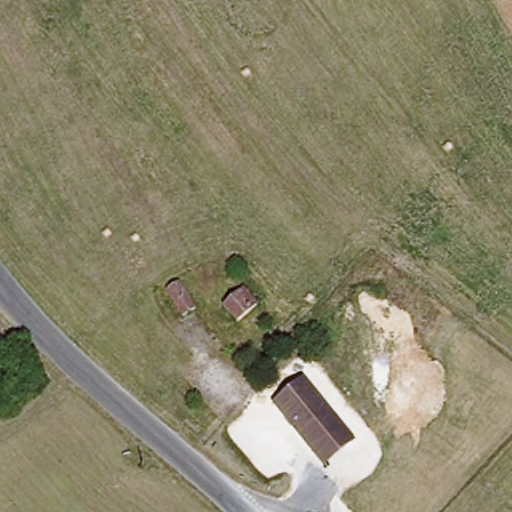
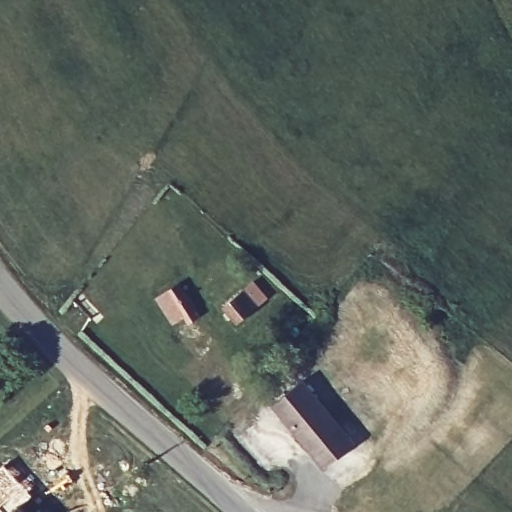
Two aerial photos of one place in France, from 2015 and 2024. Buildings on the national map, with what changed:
unchanged [(238,317),(220,298),(243,277),(260,295),(238,317)]
unchanged [(190,303),(180,312),(168,301),(162,307),(147,293),(170,282),(190,303)]
unchanged [(295,385),(357,440),(333,466),(272,411),(295,385)]
new [(28,494),(20,502),(28,512),(0,512),(0,469),(4,465),(28,494)]

